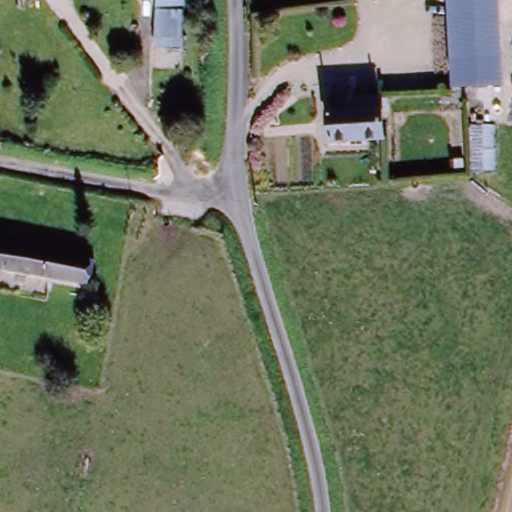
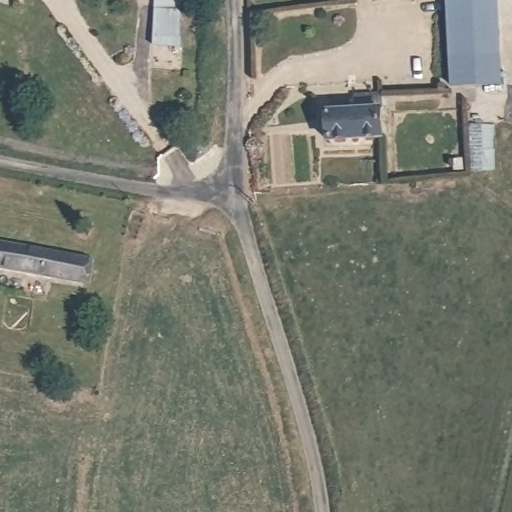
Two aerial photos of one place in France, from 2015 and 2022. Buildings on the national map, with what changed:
unchanged [(172,50),(145,46),(153,0),(181,0),(172,50)]
unchanged [(502,88),(452,91),(452,82),(448,0),(497,0),(502,88)]
unchanged [(350,91),(384,88),(387,140),(330,145),(327,113),(350,111),(350,91)]
unchanged [(0,273),(0,241),(92,259),(89,286),(0,273)]

